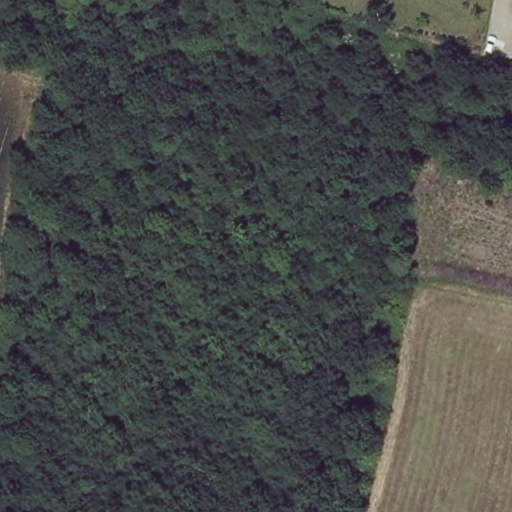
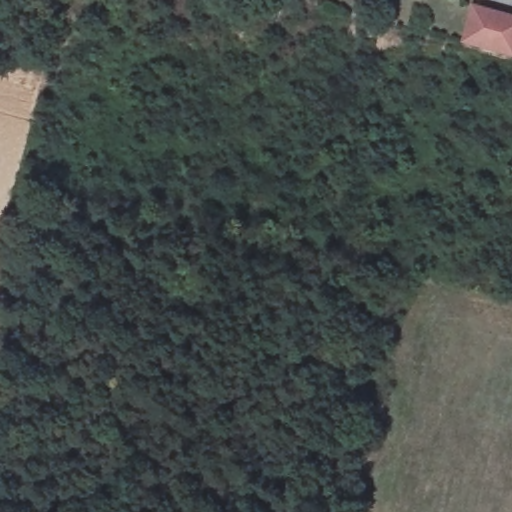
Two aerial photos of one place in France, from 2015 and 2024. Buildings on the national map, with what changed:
new [(474,5),(512,15),(512,55),(465,42),(474,5)]

